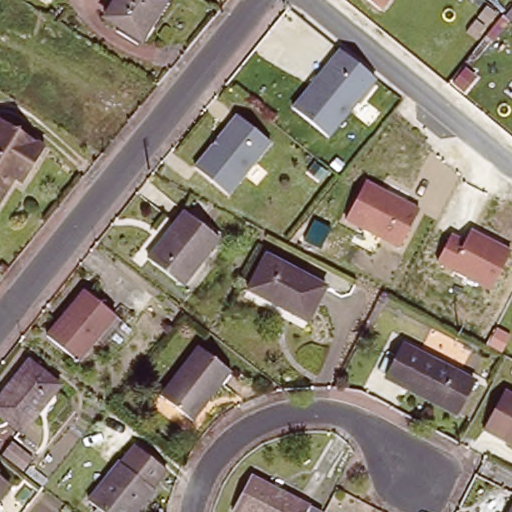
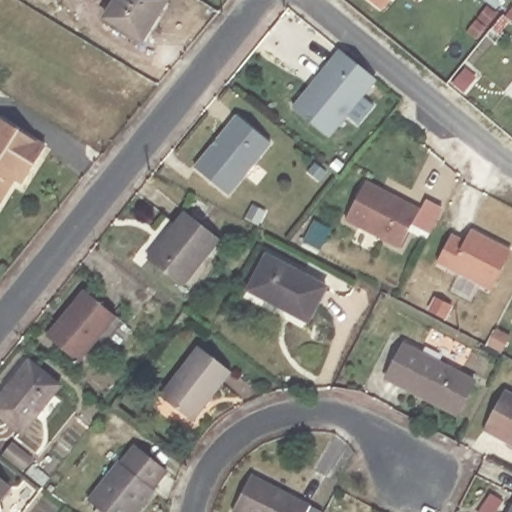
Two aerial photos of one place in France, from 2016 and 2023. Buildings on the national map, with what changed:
unchanged [(123,29),(125,25),(112,17),(121,0),(168,0),(162,12),(145,41),(123,29)]
unchanged [(381,7),(372,0),(386,0),(381,7)]
unchanged [(295,106),(342,47),(377,76),(330,135),(295,106)]
unchanged [(235,114),(268,141),(226,193),(193,167),(235,114)]
unchanged [(22,178),(15,173),(0,198),(0,117),(43,143),(22,178)]
unchanged [(417,210),(399,251),(342,224),(364,179),(417,210)]
unchanged [(182,286),(148,262),(182,213),(216,237),(182,286)]
unchanged [(467,235),(470,228),(511,250),(490,293),(435,263),(448,233),(467,235)]
unchanged [(327,285),(310,321),(252,291),(271,255),(327,285)]
unchanged [(74,359),(45,336),(61,315),(82,288),(111,312),(89,340),(74,359)]
unchanged [(454,415),(384,379),(401,345),(471,380),(454,415)]
unchanged [(192,425),(160,400),(199,349),(231,374),(192,425)]
unchanged [(19,432),(0,417),(0,399),(29,362),(57,384),(19,432)]
unchanged [(483,433),(502,393),(512,398),(512,447),(483,433)]
unchanged [(2,454),(12,442),(33,459),(24,471),(2,454)]
unchanged [(155,491),(138,512),(103,512),(91,503),(121,464),(122,466),(137,448),(152,461),(162,472),(164,475),(153,489),(155,491)]
unchanged [(0,502),(0,470),(16,482),(0,502)]
unchanged [(302,512),(241,512),(232,507),(249,474),(306,503),(302,512)]
unchanged [(508,512),(512,504),(512,512),(508,512)]

